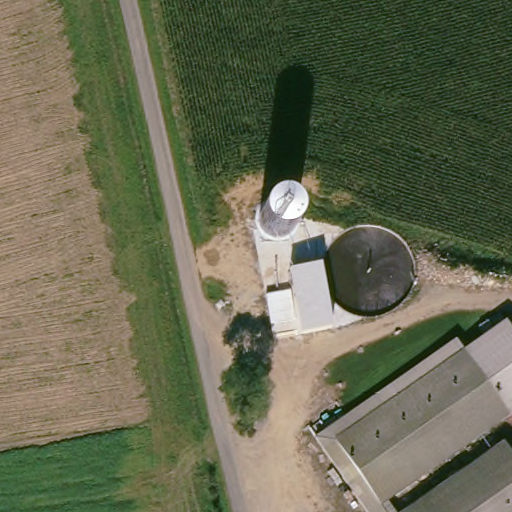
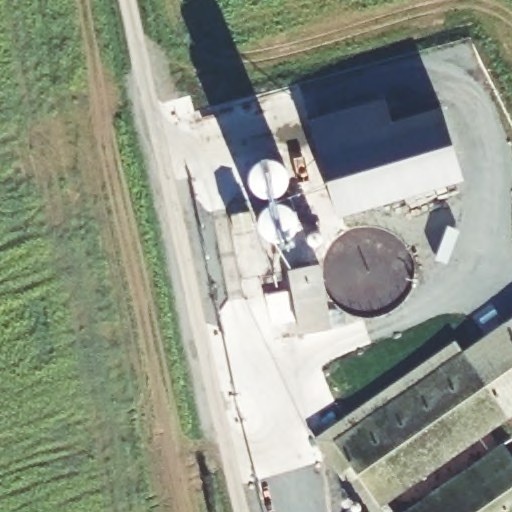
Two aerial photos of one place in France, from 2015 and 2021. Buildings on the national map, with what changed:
new [(391,122),(441,109),(463,180),(337,217),(311,121),(385,99),(391,122)]
new [(270,196),(263,194),(258,191),(253,187),(251,182),(250,177),(250,172),(251,167),(255,162),(258,159),(264,157),(270,156),(276,158),(281,160),(285,165),(287,171),(288,177),(287,182),(285,187),(281,190),(275,194),(270,196)]
unchanged [(262,231),(260,228),(259,223),(259,218),(261,212),(263,209),(266,206),(271,203),(277,201),(281,201),(286,202),(291,205),(294,210),(296,215),(297,220),(296,226),(294,232),(289,235),(284,237),(277,239),(271,238),(268,237),(264,233),(262,231)]
new [(249,203),(254,231),(236,234),(232,206),(249,203)]
unchanged [(321,264),(332,330),(300,335),(288,271),(321,264)]
new [(512,316),(512,332),(505,321),(512,316)]
unchanged [(454,341),(462,351),(505,321),(512,332),(512,406),(475,352),(352,435),(394,498),(403,512),(364,512),(314,439),(454,341)]
unchanged [(512,406),(512,418),(395,498),(404,512),(403,512),(394,498),(352,435),(475,352),(512,406)]
unchanged [(467,512),(443,484),(511,440),(512,442),(512,512),(467,512)]
unchanged [(443,484),(467,512),(407,512),(412,508),(443,484)]

